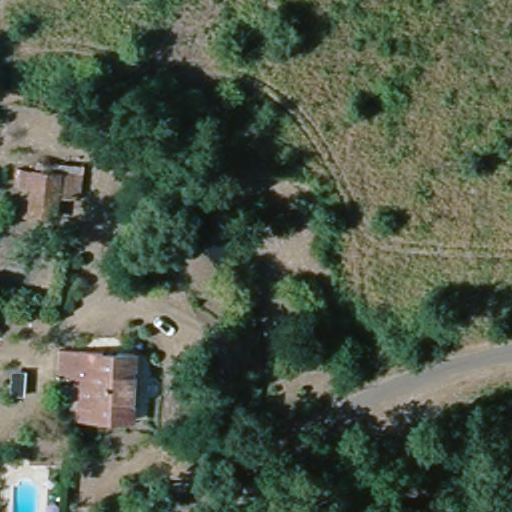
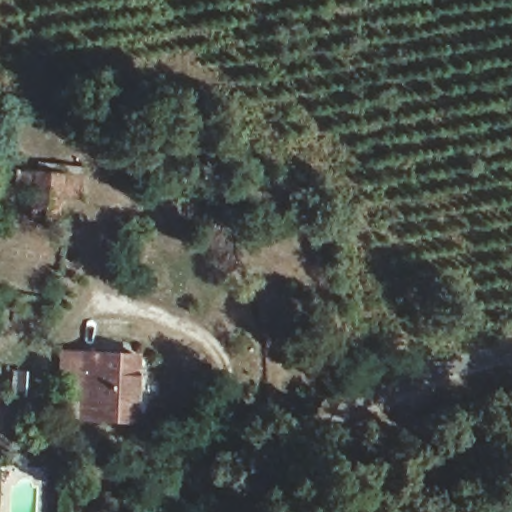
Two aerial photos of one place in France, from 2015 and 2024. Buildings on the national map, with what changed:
unchanged [(33,167),(68,168),(65,213),(29,212),(33,167)]
unchanged [(139,422),(80,418),(71,417),(73,388),(82,389),(83,374),(73,374),(75,351),(85,352),(143,355),(139,422)]

